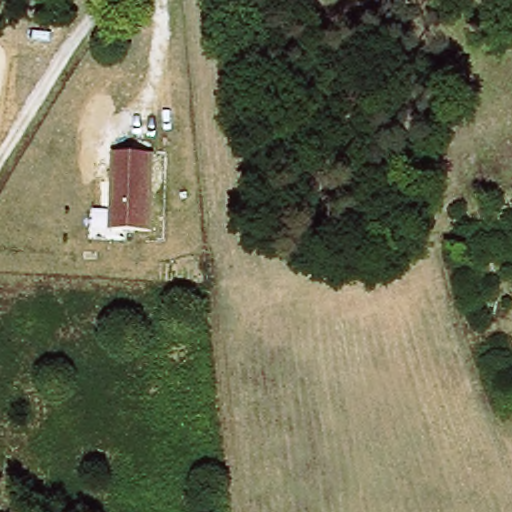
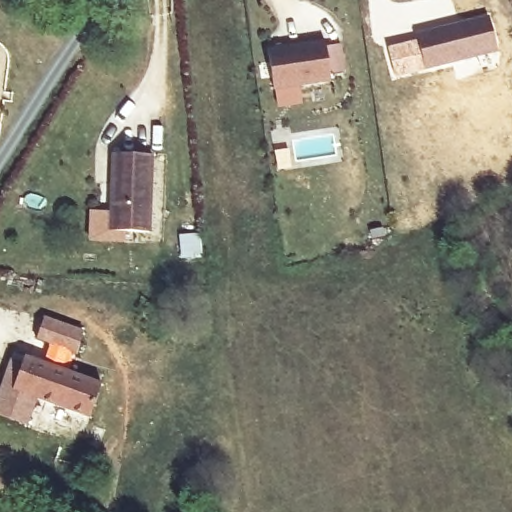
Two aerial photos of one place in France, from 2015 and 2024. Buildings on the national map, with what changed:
new [(415,37),(414,32),(488,12),(499,51),(394,78),(386,45),(415,37)]
new [(327,38),(334,80),(275,89),(267,47),(327,38)]
unchanged [(110,151),(153,154),(152,232),(108,230),(110,151)]
new [(45,316),(85,331),(77,352),(37,337),(45,316)]
new [(5,371),(17,376),(24,355),(101,383),(88,417),(36,398),(26,425),(0,416),(0,385),(5,371)]

